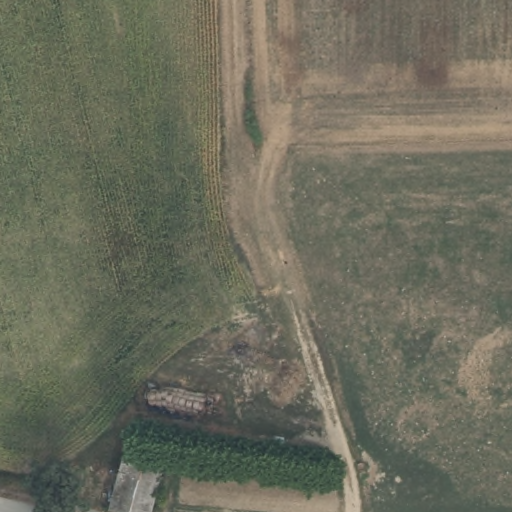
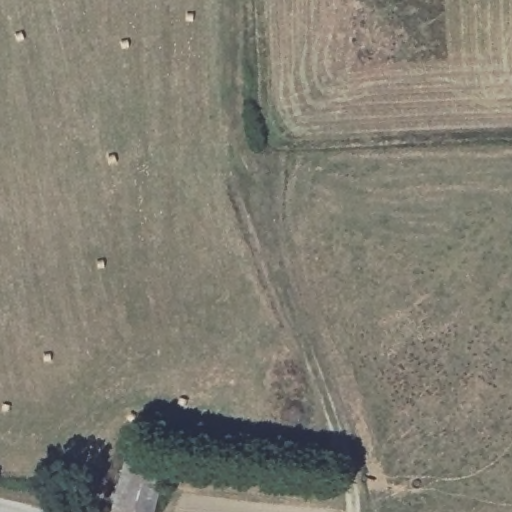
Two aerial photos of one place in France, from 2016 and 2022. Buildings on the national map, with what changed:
unchanged [(162,455),(165,510),(142,510),(142,512),(108,512),(108,455),(162,455)]

